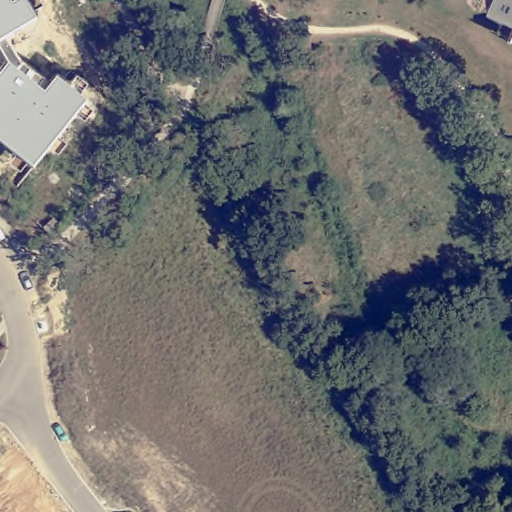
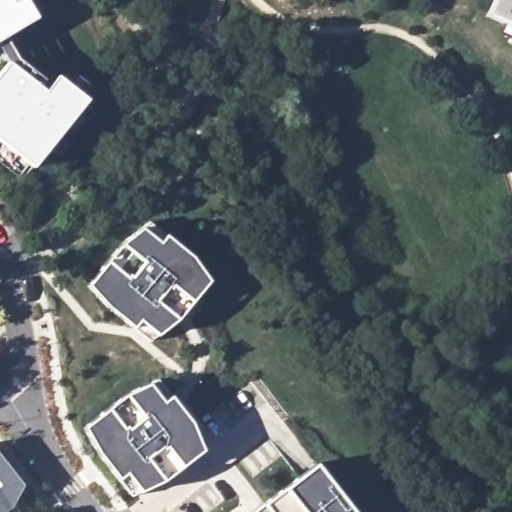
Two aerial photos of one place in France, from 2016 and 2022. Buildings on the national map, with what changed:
unchanged [(27,2),(30,0),(40,0),(42,5),(32,10),(36,16),(4,35),(15,53),(50,83),(57,74),(70,84),(76,76),(87,84),(81,93),(87,97),(97,105),(87,118),(76,110),(57,135),(67,141),(60,153),(50,145),(34,166),(26,160),(20,169),(6,158),(12,148),(0,139),(0,70),(8,60),(0,46),(0,0),(26,0),(27,2)]
unchanged [(496,0),(512,0),(512,25),(490,15),(496,0)]
new [(120,245),(142,227),(160,242),(167,235),(192,256),(209,280),(185,310),(159,335),(140,319),(133,326),(114,311),(88,285),(120,245)]
new [(125,393),(150,382),(164,401),(170,395),(191,423),(204,450),(185,466),(169,479),(140,490),(126,472),(117,477),(100,456),(85,427),(125,393)]
unchanged [(3,512),(0,512),(0,454),(22,483),(10,506),(3,512)]
new [(315,462),(353,512),(252,512),(283,487),(315,462)]
unchanged [(43,512),(44,511),(45,512),(43,512)]

